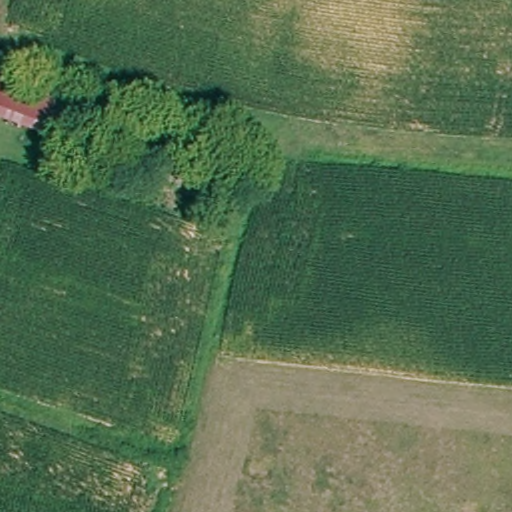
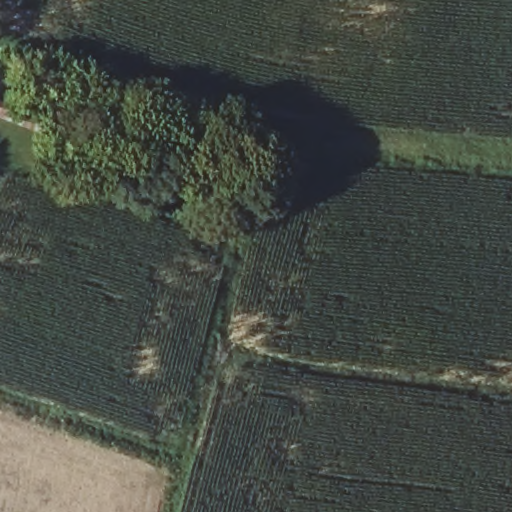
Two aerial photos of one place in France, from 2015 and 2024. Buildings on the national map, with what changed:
unchanged [(54,121),(48,137),(0,120),(0,83),(50,100),(84,106),(85,128),(54,121)]

